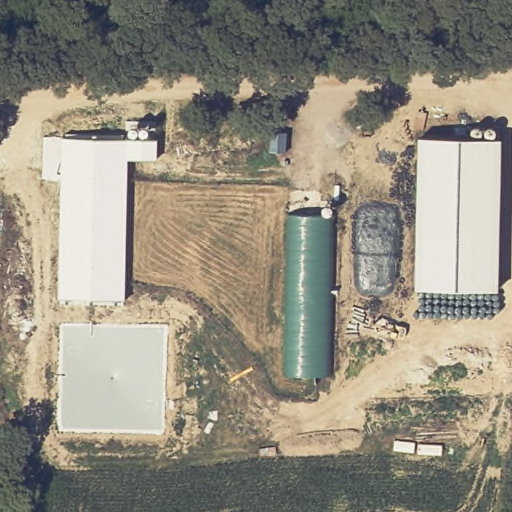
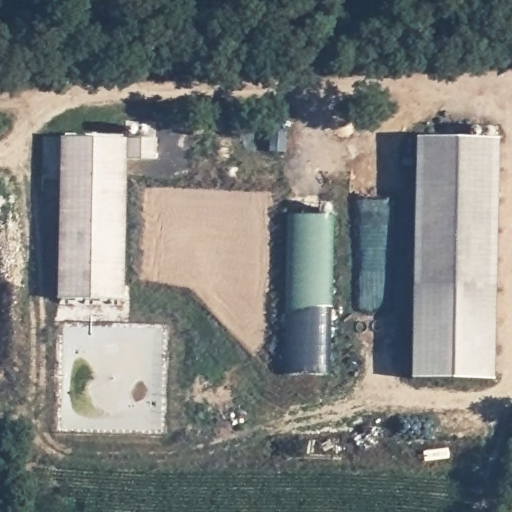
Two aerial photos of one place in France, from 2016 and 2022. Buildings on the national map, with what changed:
unchanged [(61,138),(127,136),(128,126),(149,127),(148,136),(156,138),(156,158),(128,157),(124,299),(58,297),(61,138)]
unchanged [(417,136),(474,138),(476,128),(495,129),(496,138),(500,138),(497,290),(413,289),(417,136)]
unchanged [(330,376),(286,376),(288,214),(333,214),(330,376)]
new [(497,290),(495,380),(411,379),(413,289),(497,290)]

